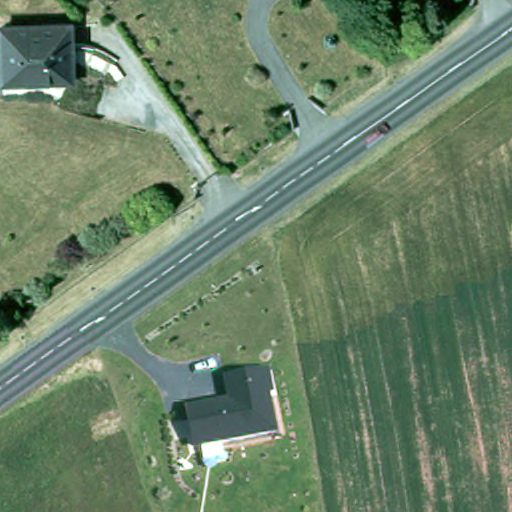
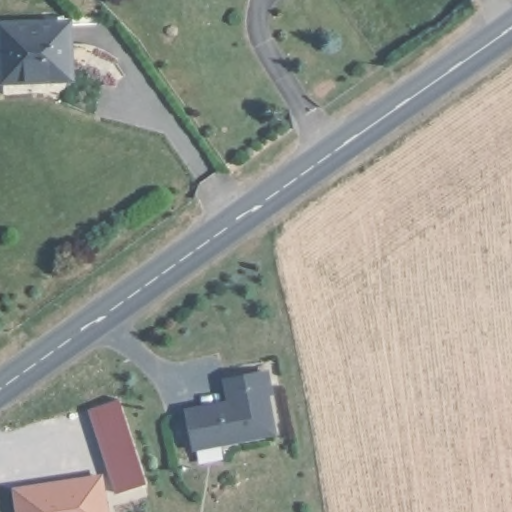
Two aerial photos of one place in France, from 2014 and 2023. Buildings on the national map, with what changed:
unchanged [(3,81),(1,27),(68,24),(70,78),(3,81)]
unchanged [(186,406),(225,400),(222,378),(269,370),(275,395),(270,397),(277,434),(192,448),(186,406)]
new [(118,399),(145,484),(114,493),(87,410),(118,399)]
new [(108,512),(14,512),(10,487),(102,473),(108,512)]

